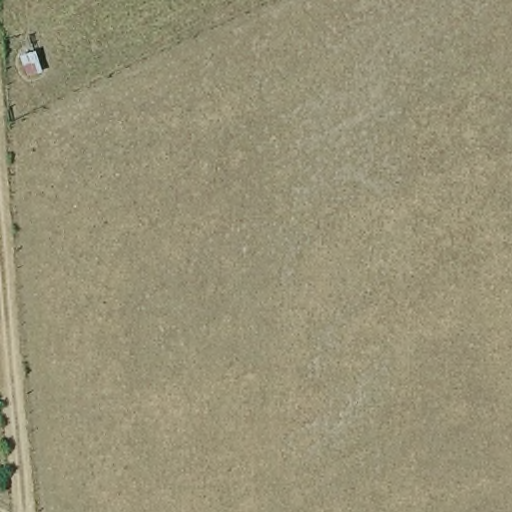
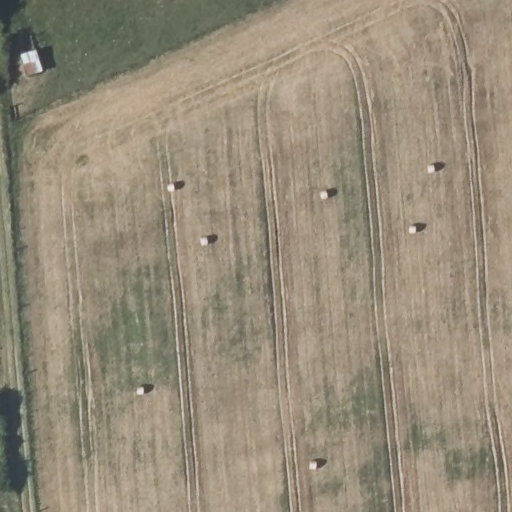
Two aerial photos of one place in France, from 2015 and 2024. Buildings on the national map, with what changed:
unchanged [(43,73),(22,77),(19,55),(37,52),(43,73)]

